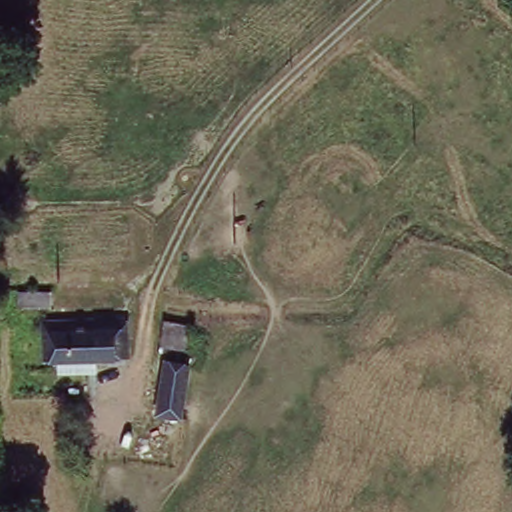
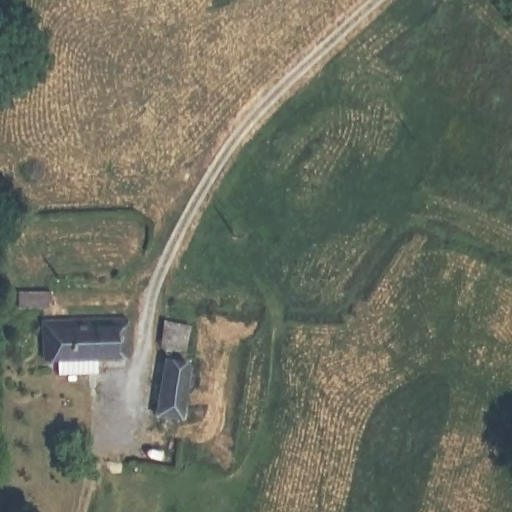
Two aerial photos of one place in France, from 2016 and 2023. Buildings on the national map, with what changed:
unchanged [(45,272),(44,291),(10,288),(12,268),(45,272)]
unchanged [(186,300),(182,328),(160,326),(162,298),(186,300)]
unchanged [(55,371),(56,350),(46,349),(47,323),(130,325),(127,352),(96,351),(96,372),(55,371)]
unchanged [(195,362),(190,410),(160,407),(164,360),(195,362)]

